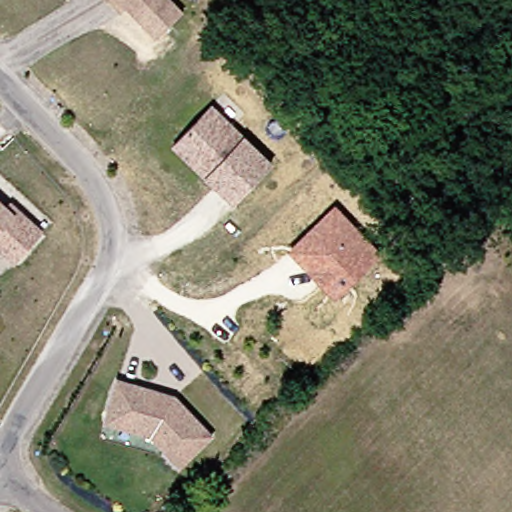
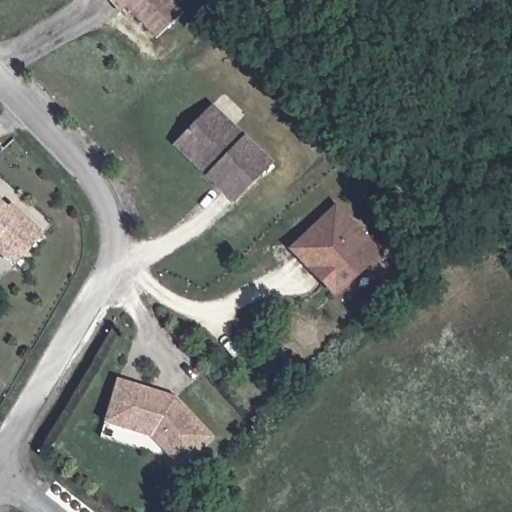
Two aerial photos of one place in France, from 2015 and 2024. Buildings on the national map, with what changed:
unchanged [(110,0),(171,0),(183,12),(155,39),(125,6),(120,11),(110,0)]
unchanged [(182,138),(215,106),(272,165),(233,205),(206,177),(175,145),(182,138)]
unchanged [(0,254),(0,207),(2,209),(6,205),(16,213),(39,234),(12,265),(0,254)]
unchanged [(378,254),(336,296),(292,249),(333,211),(378,254)]
unchanged [(174,394),(210,434),(177,465),(149,434),(103,420),(117,377),(174,394)]

